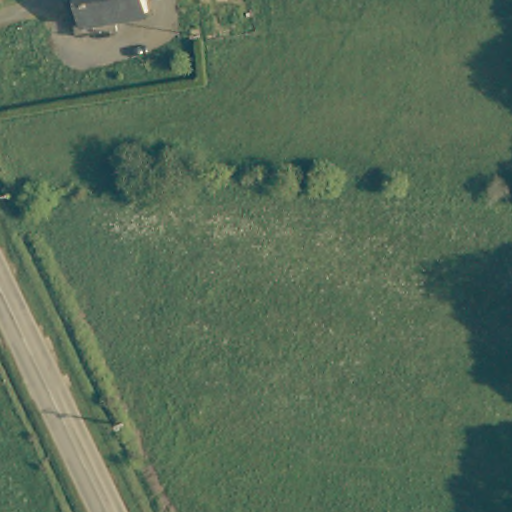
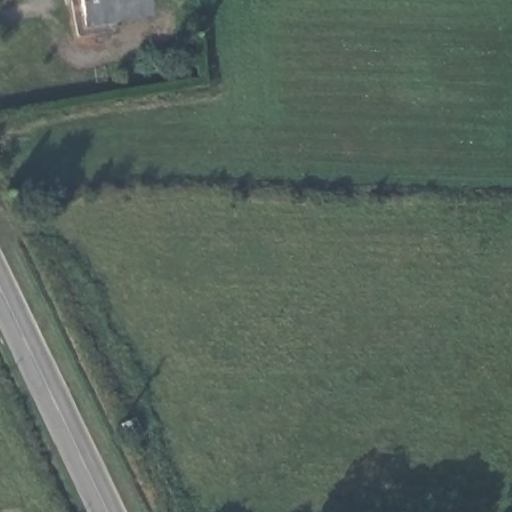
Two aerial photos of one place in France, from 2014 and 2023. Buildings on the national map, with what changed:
unchanged [(85,36),(79,0),(154,0),(156,10),(122,16),(124,30),(85,36)]

